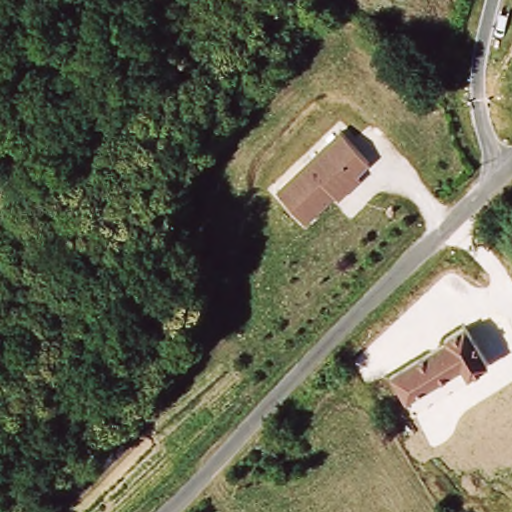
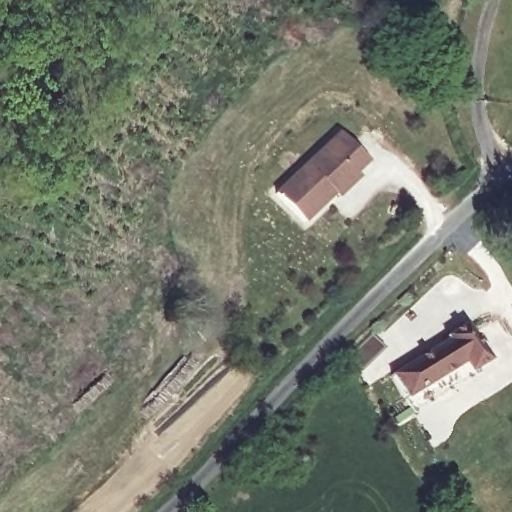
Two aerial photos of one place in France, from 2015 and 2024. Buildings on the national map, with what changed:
unchanged [(360,180),(350,189),(340,190),(304,224),(277,194),(342,135),(370,164),(356,175),(360,180)]
unchanged [(387,375),(444,340),(442,334),(465,322),(489,363),(465,378),(460,369),(405,403),(387,375)]

